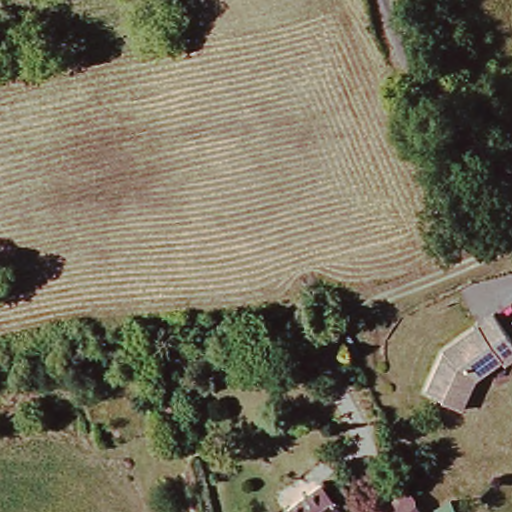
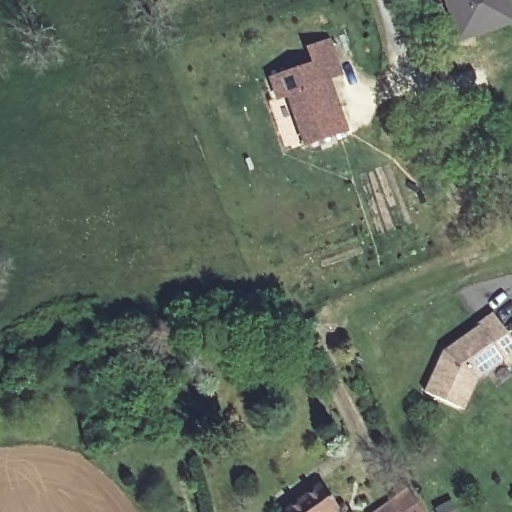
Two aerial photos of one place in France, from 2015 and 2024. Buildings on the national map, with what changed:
new [(512,11),(456,28),(448,0),(511,0),(512,4),(512,11)]
new [(342,76),(330,80),(347,131),(303,145),(288,98),(277,102),(268,76),(312,62),(307,46),(329,39),(342,76)]
unchanged [(487,331),(486,325),(505,317),(512,334),(512,354),(503,359),(505,368),(480,379),(461,411),(428,394),(455,348),(487,331)]
unchanged [(315,481),(332,506),(324,512),(279,512),(276,509),(315,481)]
unchanged [(392,509),(397,502),(408,512),(389,512),(392,509)]
unchanged [(276,509),(279,512),(272,512),(276,509)]

